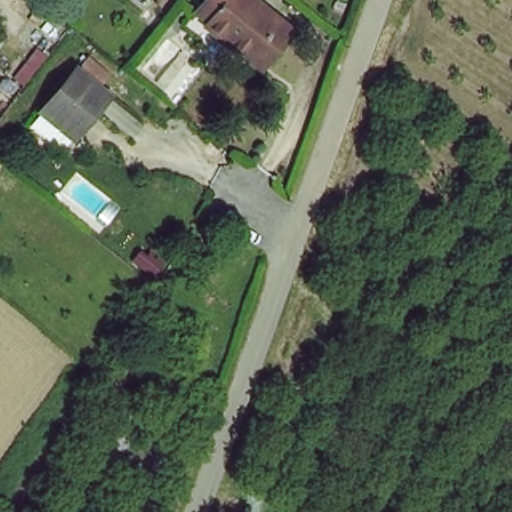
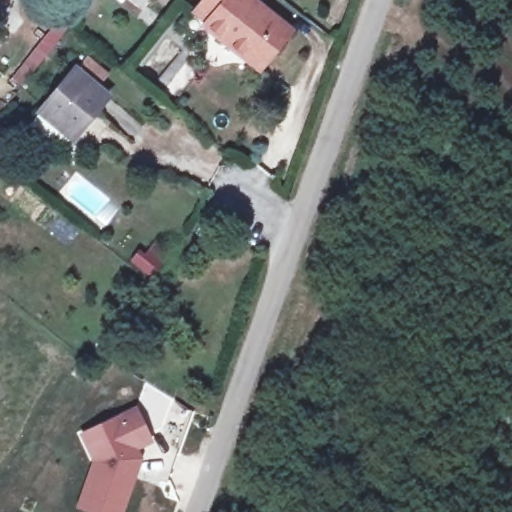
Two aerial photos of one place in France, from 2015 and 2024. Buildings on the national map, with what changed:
unchanged [(264,66),(203,22),(208,16),(196,6),(200,0),(264,0),(296,23),(264,66)]
unchanged [(83,138),(38,105),(63,70),(109,105),(83,138)]
new [(80,434),(137,406),(154,443),(139,449),(144,459),(125,512),(85,512),(76,509),(93,462),(80,434)]

